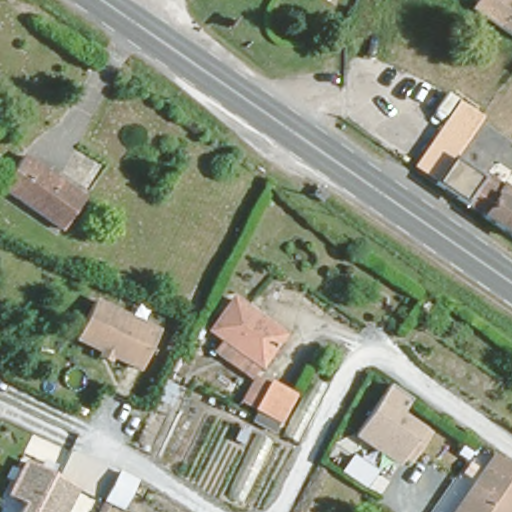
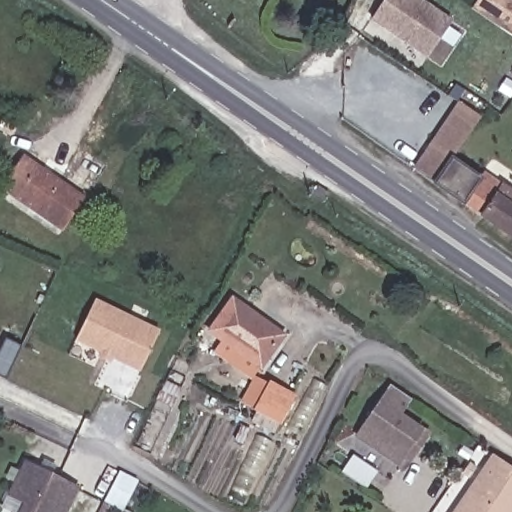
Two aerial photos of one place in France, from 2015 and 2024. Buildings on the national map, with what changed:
new [(387,0),(419,0),(453,23),(429,57),(373,20),(387,0)]
unchanged [(472,7),(476,0),(512,0),(512,34),(472,7)]
unchanged [(486,174),(512,193),(512,238),(415,167),(459,102),(482,115),(453,158),(482,179),(486,174)]
unchanged [(1,189),(23,157),(85,200),(63,232),(1,189)]
unchanged [(223,336),(210,327),(232,296),(260,316),(282,332),(280,335),(260,362),(223,336)]
unchanged [(161,332),(142,371),(79,340),(98,301),(161,332)]
unchanged [(223,336),(260,362),(256,368),(293,393),(270,429),(249,416),(255,407),(227,387),(240,367),(213,348),(223,336)]
unchanged [(403,414),(432,432),(411,463),(403,459),(400,463),(355,435),(388,387),(411,400),(403,414)]
unchanged [(370,492),(326,463),(339,444),(382,472),(370,492)]
unchanged [(512,464),(512,512),(452,512),(494,452),(512,464)]
unchanged [(11,496),(28,465),(60,481),(69,485),(78,490),(67,512),(25,512),(29,504),(11,496)]
unchanged [(138,482),(124,512),(105,502),(121,472),(138,482)]

